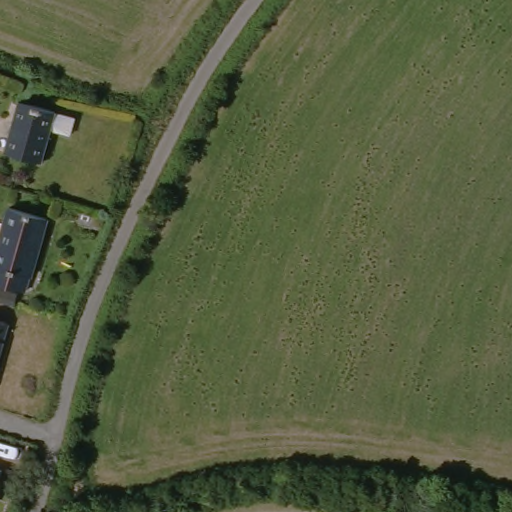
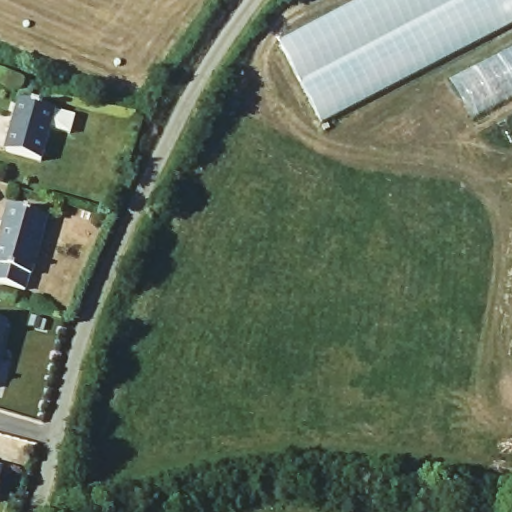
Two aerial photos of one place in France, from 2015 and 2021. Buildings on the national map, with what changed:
new [(281,42),(361,0),(512,0),(512,27),(324,123),(281,42)]
new [(454,84),(512,54),(512,95),(471,116),(454,84)]
unchanged [(39,162),(8,152),(24,101),(56,111),(39,162)]
unchanged [(0,282),(0,230),(7,208),(47,219),(27,289),(0,282)]
unchanged [(0,326),(5,327),(0,344),(0,326)]
unchanged [(0,482),(0,472),(4,473),(0,482)]

